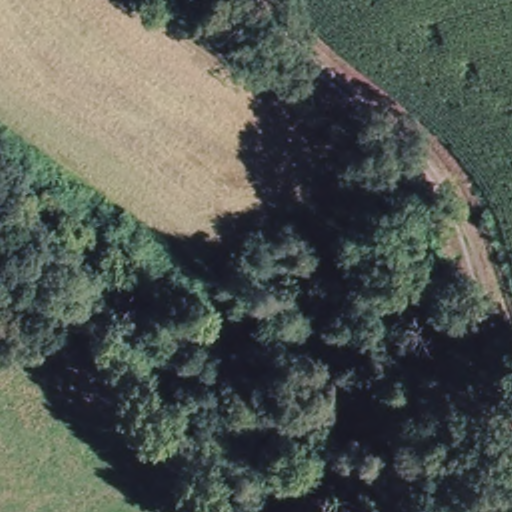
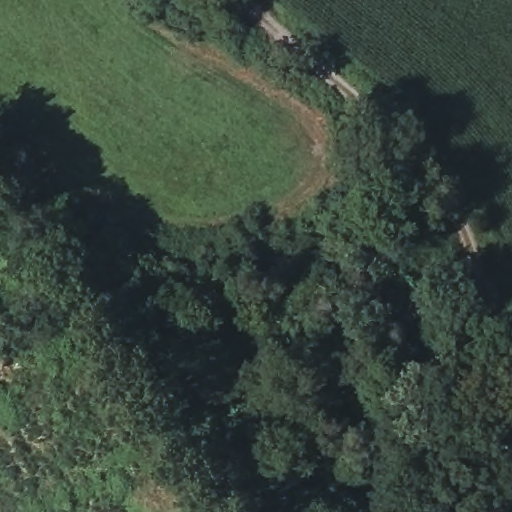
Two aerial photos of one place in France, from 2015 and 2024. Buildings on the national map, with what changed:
[]

